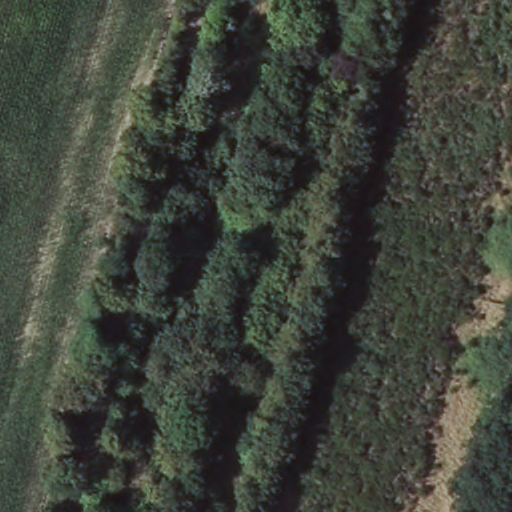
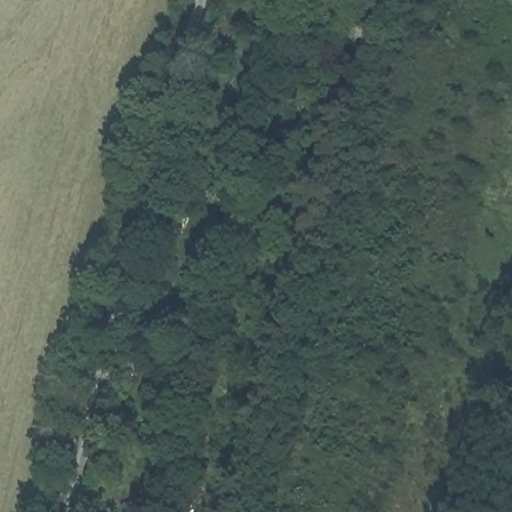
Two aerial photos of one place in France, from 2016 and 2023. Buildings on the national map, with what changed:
unchanged [(204,478),(196,512),(173,512),(178,473),(204,478)]

